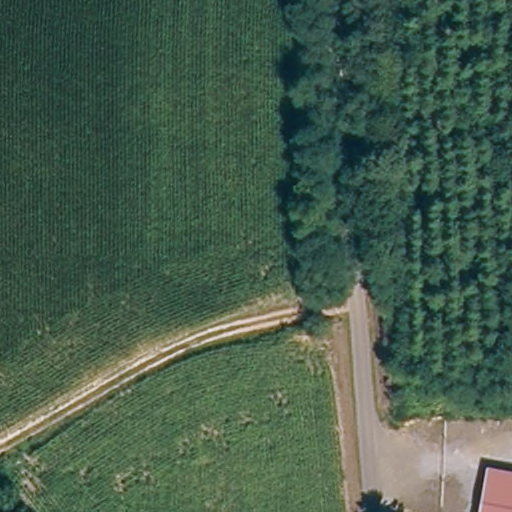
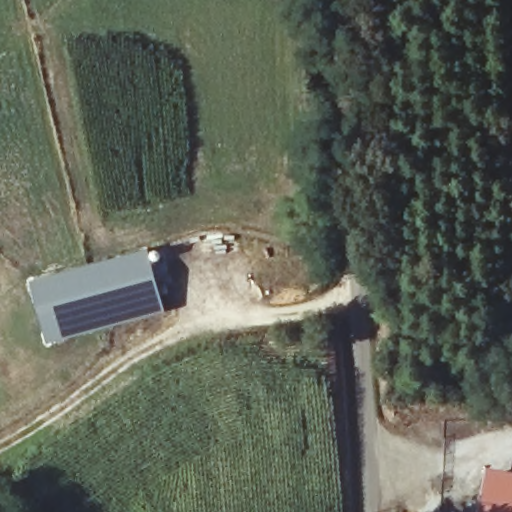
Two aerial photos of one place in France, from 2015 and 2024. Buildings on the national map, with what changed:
new [(165,309),(48,344),(30,280),(148,248),(165,309)]
unchanged [(512,473),(512,512),(478,512),(486,468),(512,473)]

